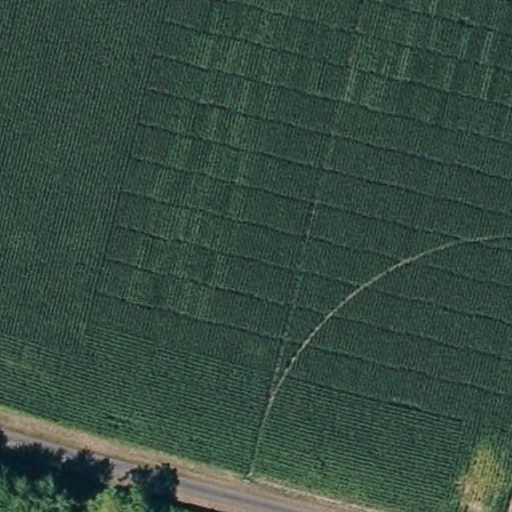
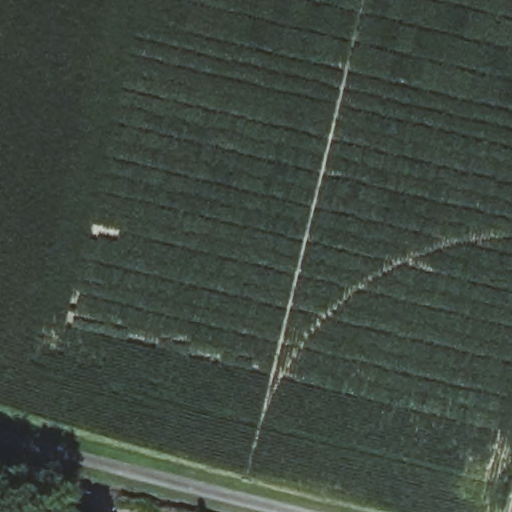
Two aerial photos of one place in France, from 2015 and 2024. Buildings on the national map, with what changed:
[]

